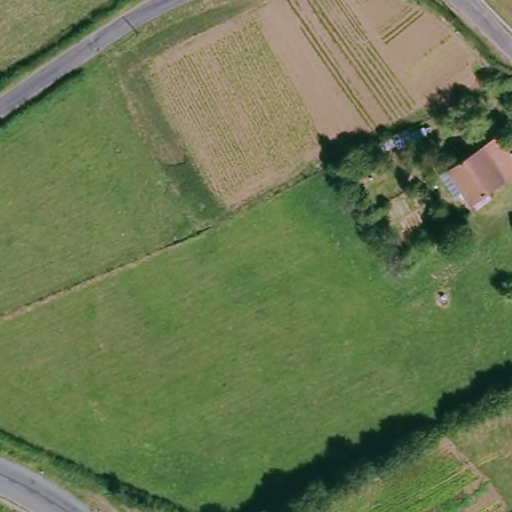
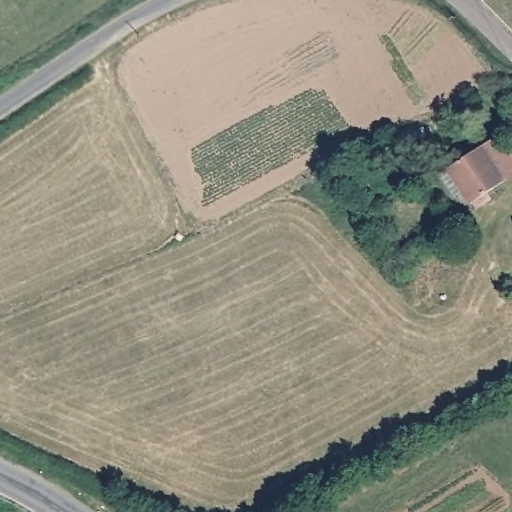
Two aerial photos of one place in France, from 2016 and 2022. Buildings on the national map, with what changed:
unchanged [(512,153),(512,176),(487,193),(493,201),(482,208),(467,187),(456,194),(448,184),(439,171),(449,164),(497,133),(512,153)]

